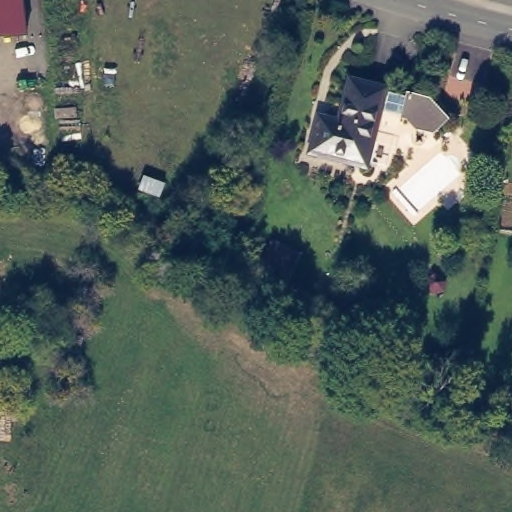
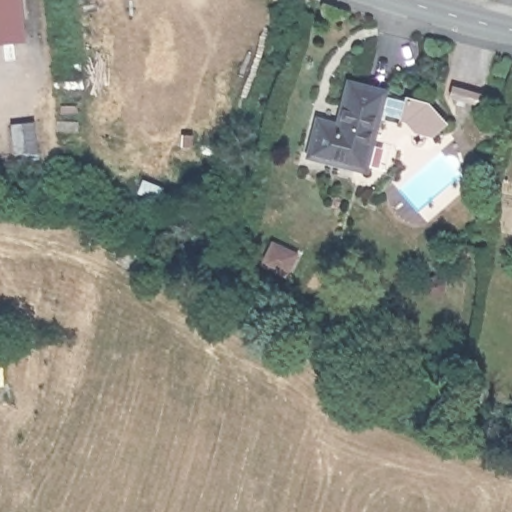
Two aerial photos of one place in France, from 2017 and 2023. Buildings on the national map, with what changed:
unchanged [(0,0),(21,0),(26,40),(0,43),(0,0)]
unchanged [(372,162),(320,149),(327,117),(347,121),(357,79),(390,86),(372,162)]
unchanged [(410,95),(429,99),(447,119),(435,130),(420,127),(410,116),(405,115),(410,95)]

